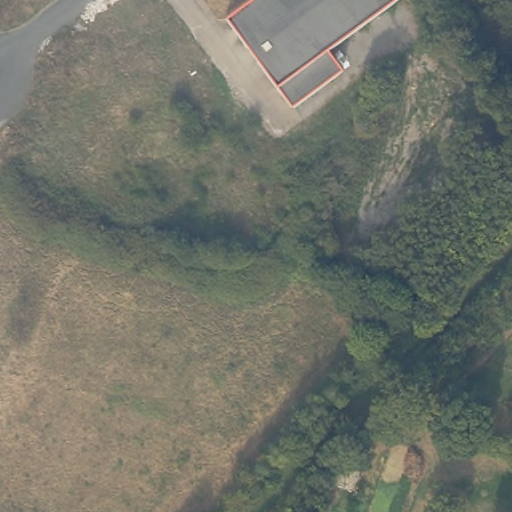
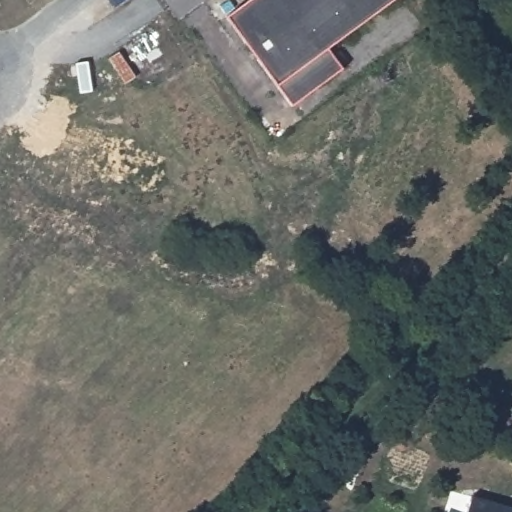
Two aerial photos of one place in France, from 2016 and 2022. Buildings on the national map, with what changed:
unchanged [(249,0),(391,0),(329,48),(344,70),(291,110),(224,20),(249,0)]
new [(512,507),(512,512),(468,512),(474,497),(512,507)]

